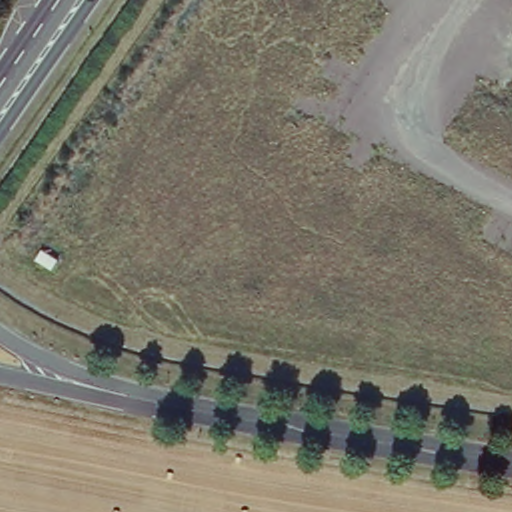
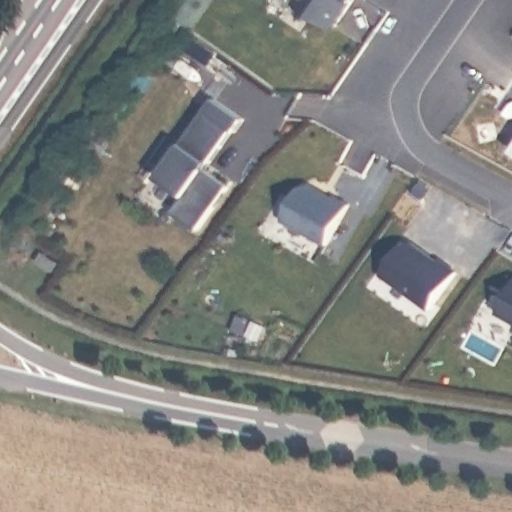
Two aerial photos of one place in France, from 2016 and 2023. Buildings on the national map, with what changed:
new [(296,9),(303,0),(350,0),(351,1),(328,35),(296,9)]
new [(207,110),(234,130),(205,170),(229,187),(198,232),(173,215),(186,197),(160,177),(207,110)]
new [(305,170),(355,200),(323,246),(275,218),(305,170)]
new [(402,225),(455,260),(425,302),(377,270),(402,225)]
new [(512,256),(512,325),(488,310),(502,290),(488,277),(507,253),(512,256)]

